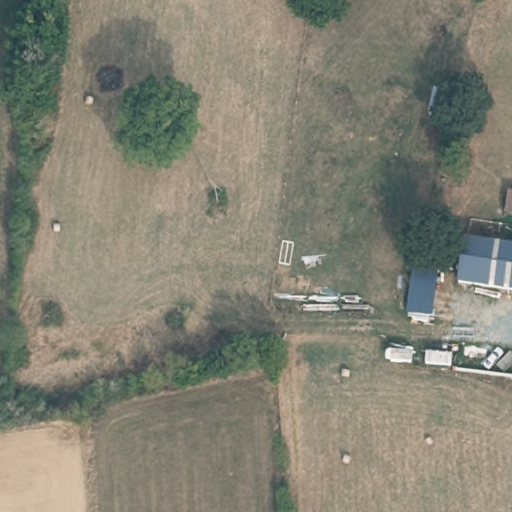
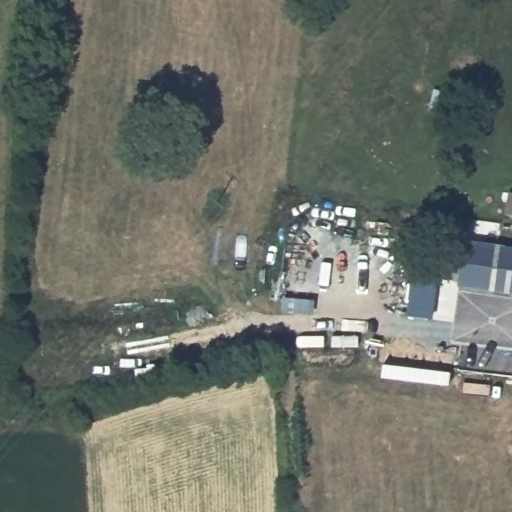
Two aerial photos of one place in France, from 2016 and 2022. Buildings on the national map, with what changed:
unchanged [(463,241),(512,248),(512,293),(457,286),(463,241)]

